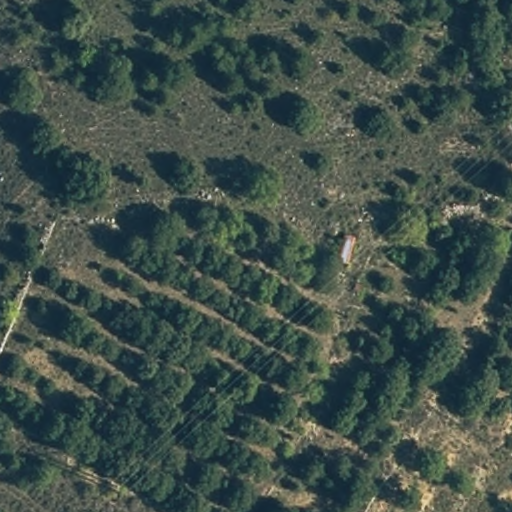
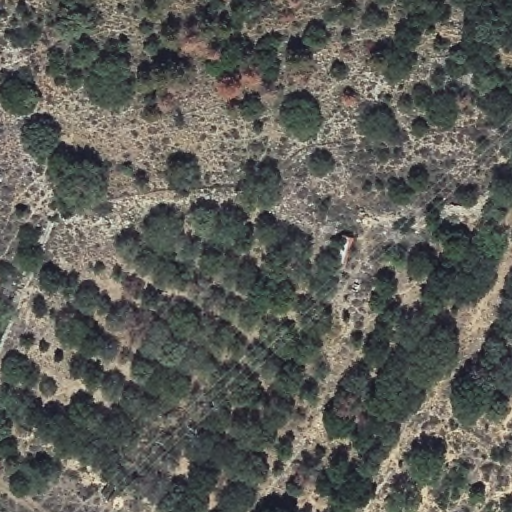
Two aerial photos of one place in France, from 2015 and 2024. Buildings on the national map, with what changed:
unchanged [(332,265),(345,230),(356,237),(345,270),(332,265)]

